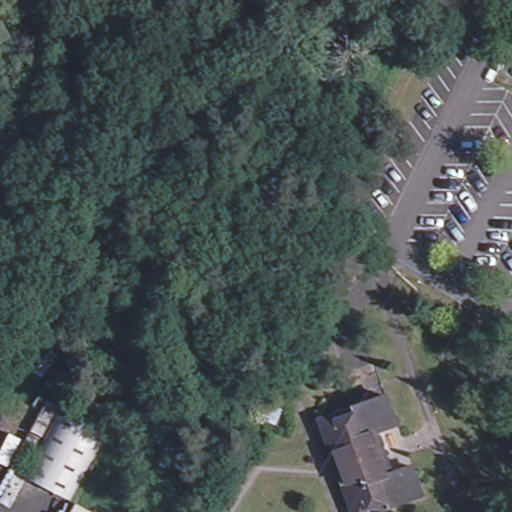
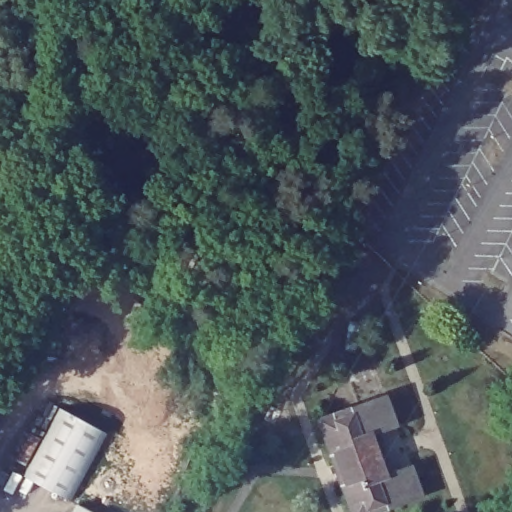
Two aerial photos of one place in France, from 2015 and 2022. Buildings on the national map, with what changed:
unchanged [(323,421),(388,399),(397,427),(377,433),(392,478),(412,471),(422,499),(383,512),(353,512),(323,421)]
unchanged [(60,402),(89,418),(52,488),(20,471),(60,402)]
unchanged [(89,418),(117,433),(77,502),(52,488),(89,418)]
unchanged [(84,506),(95,512),(80,512),(84,506)]

